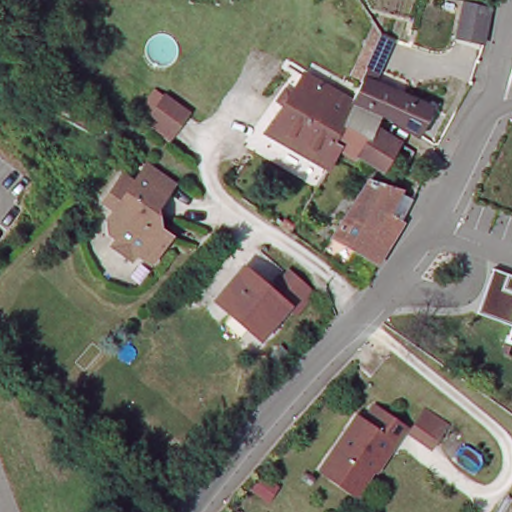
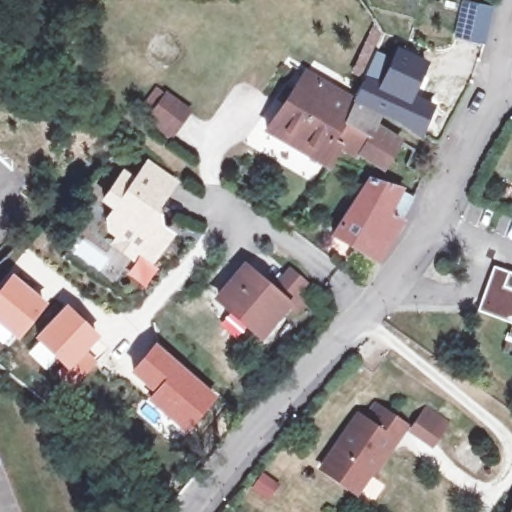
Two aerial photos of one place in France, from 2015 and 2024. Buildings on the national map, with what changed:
unchanged [(487,41),(463,35),(464,29),(470,2),(495,8),(487,41)]
unchanged [(379,85),(436,109),(425,136),(419,132),(387,115),(387,116),(364,107),(358,105),(367,84),(355,77),(380,26),(388,38),(398,42),(379,85)]
unchanged [(361,162),(345,152),(335,172),(272,136),(302,91),(307,84),(309,80),(357,107),(387,119),(381,129),(406,145),(396,162),(388,177),(361,162)]
unchanged [(167,97),(168,96),(190,113),(172,134),(151,117),(167,97)]
unchanged [(123,172),(135,180),(147,162),(175,182),(157,207),(160,226),(171,233),(152,260),(139,251),(135,257),(113,242),(118,235),(111,229),(110,216),(115,207),(105,199),(123,172)]
unchanged [(402,222),(377,261),(333,235),(368,179),(400,189),(413,197),(401,218),(400,222),(402,222)]
unchanged [(247,316),(215,287),(240,257),(269,282),(285,262),(309,283),(292,302),(282,293),(262,316),(256,323),(247,316)]
unchanged [(512,324),(480,312),(494,267),(512,274),(512,324)]
new [(11,272),(46,302),(27,326),(5,346),(0,342),(0,286),(11,272)]
new [(67,303),(99,336),(87,348),(99,362),(75,384),(33,337),(67,303)]
unchanged [(512,329),(512,342),(507,340),(512,329)]
new [(155,341),(216,394),(184,432),(145,399),(152,392),(130,372),(155,341)]
unchanged [(315,477),(318,473),(352,425),(359,430),(369,416),(400,436),(389,452),(356,499),(353,497),(350,502),(315,477)]
unchanged [(442,432),(440,436),(431,448),(409,432),(417,420),(420,416),(442,432)]

